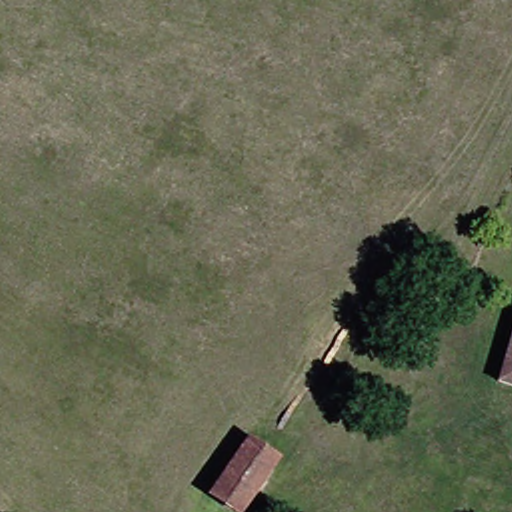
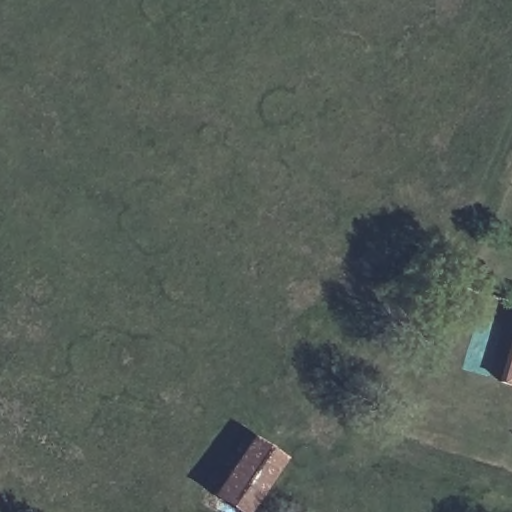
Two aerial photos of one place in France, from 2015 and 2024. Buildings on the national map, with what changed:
unchanged [(492,373),(512,325),(512,379),(492,373)]
unchanged [(236,512),(231,512),(201,493),(241,434),(275,456),(236,512)]

